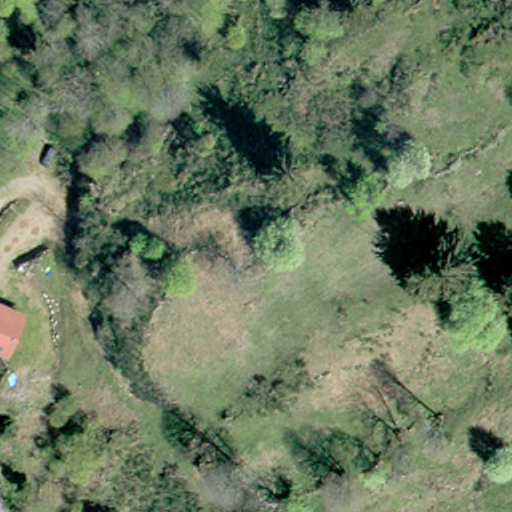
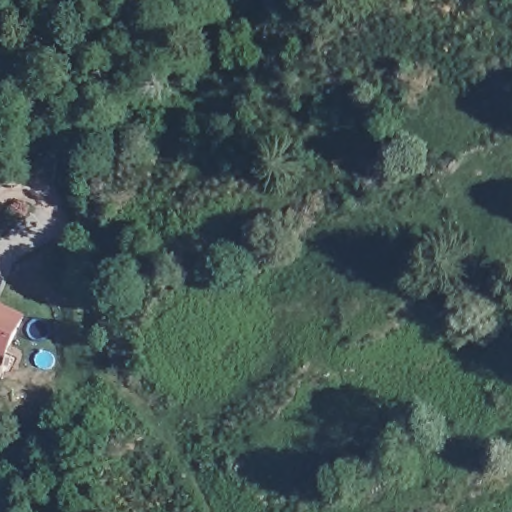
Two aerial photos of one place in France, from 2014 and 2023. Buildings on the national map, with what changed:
unchanged [(0,346),(0,308),(15,316),(0,346)]

